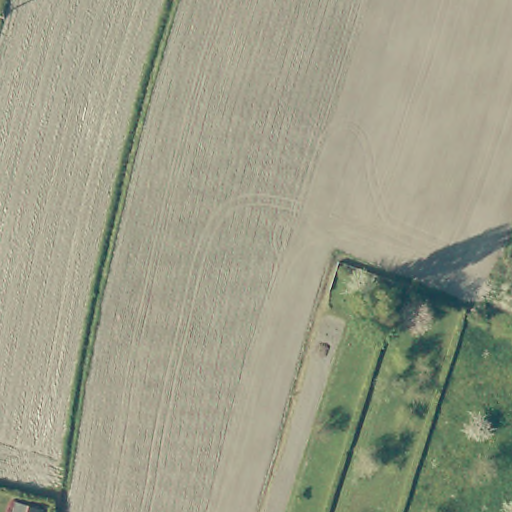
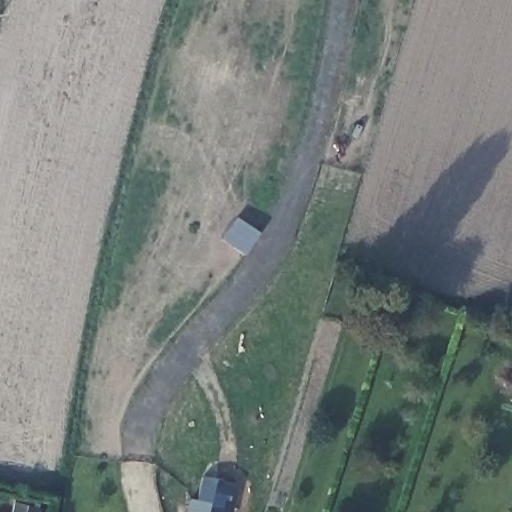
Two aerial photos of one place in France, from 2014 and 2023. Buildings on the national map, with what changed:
unchanged [(334,290),(346,264),(370,273),(358,300),(334,290)]
new [(187,512),(190,499),(196,500),(202,476),(238,484),(231,512),(187,512)]

